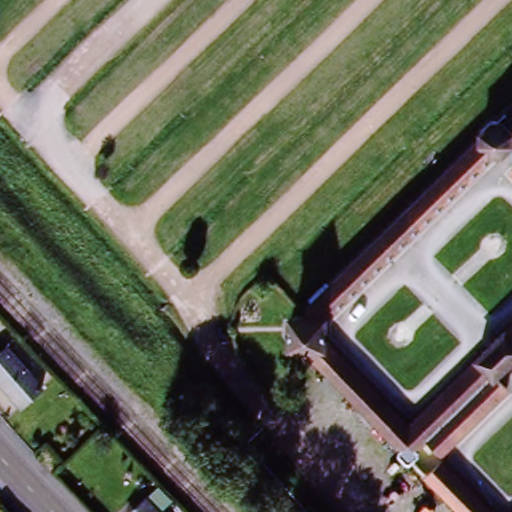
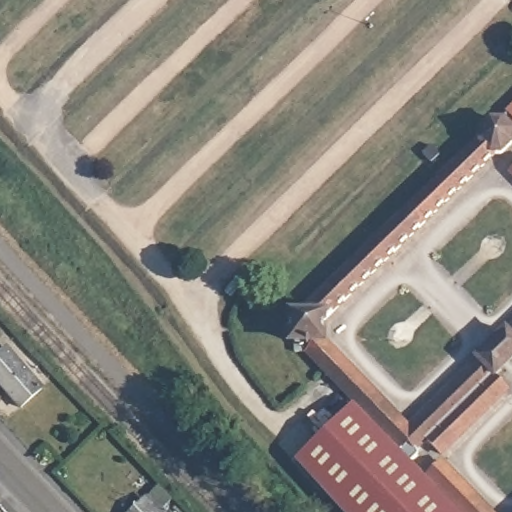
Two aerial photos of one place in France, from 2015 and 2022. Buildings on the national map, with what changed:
unchanged [(510,112),(512,110),(512,115),(510,112)]
unchanged [(495,377),(509,389),(442,454),(427,438),(416,449),(418,452),(417,456),(412,462),(410,464),(399,453),(400,451),(365,414),(305,353),(295,352),(297,343),(292,339),(292,326),(292,325),(292,320),(295,316),(307,317),(307,307),(480,141),(480,130),(489,122),(501,122),(512,133),(512,142),(323,324),(322,339),(409,425),(512,325),(512,360),(495,377)]
unchanged [(0,338),(0,321),(1,321),(10,330),(0,339),(0,338)]
unchanged [(0,351),(4,348),(38,388),(17,407),(0,388),(0,351)]
new [(460,512),(341,512),(295,462),(355,404),(365,414),(400,451),(399,453),(410,464),(412,462),(422,473),(460,512)]
unchanged [(433,461),(438,467),(444,461),(492,512),(460,512),(422,473),(433,461)]
unchanged [(147,497),(160,512),(131,512),(147,497)]

